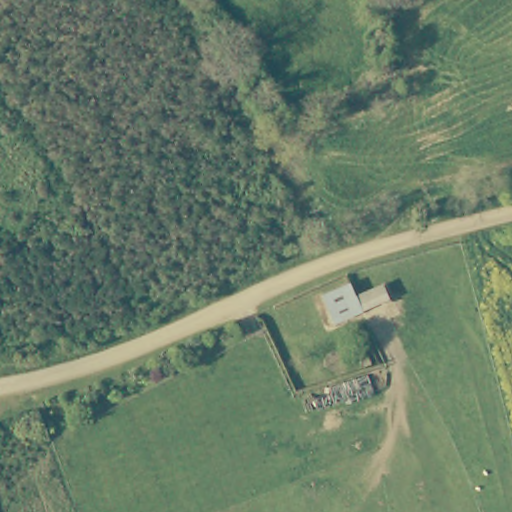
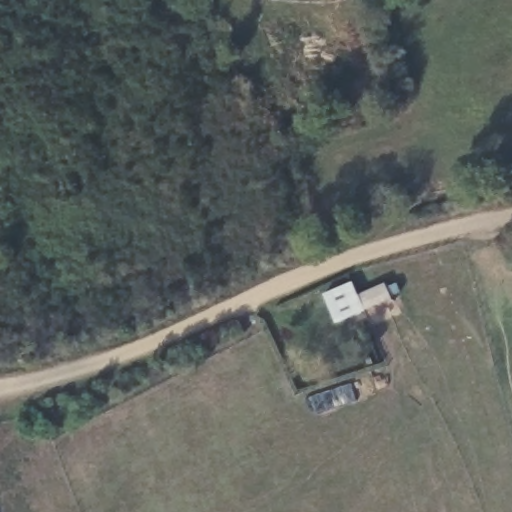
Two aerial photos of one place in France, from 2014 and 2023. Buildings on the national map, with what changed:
unchanged [(371,330),(368,319),(338,330),(324,300),(356,285),(365,299),(390,285),(401,314),(371,330)]

